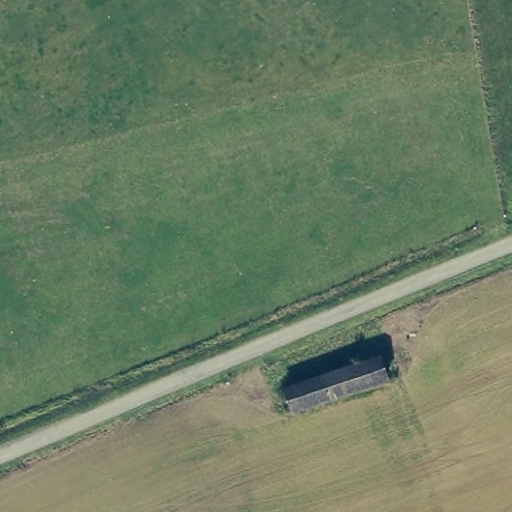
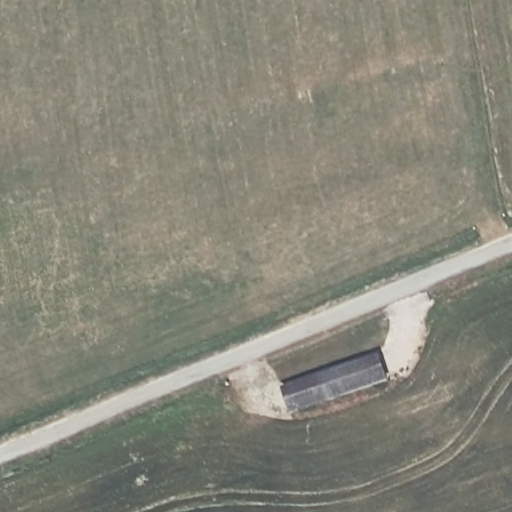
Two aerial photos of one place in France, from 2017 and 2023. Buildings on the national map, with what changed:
unchanged [(380,357),(387,381),(290,411),(283,387),(380,357)]

